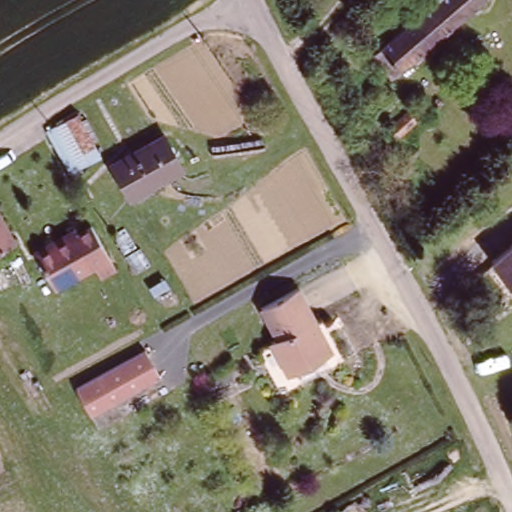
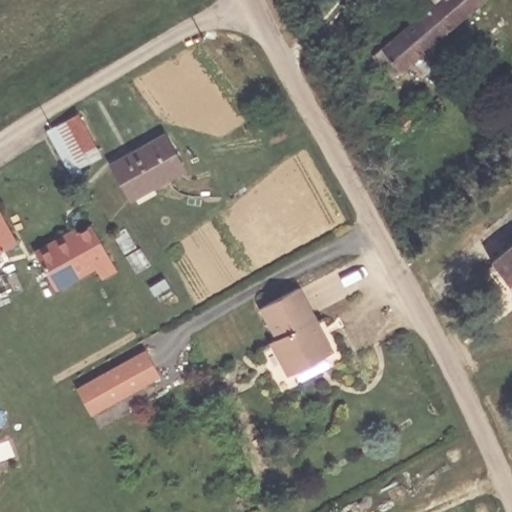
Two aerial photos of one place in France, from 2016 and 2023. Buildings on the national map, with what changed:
unchanged [(392,77),(373,52),(433,2),(431,0),(485,0),(392,77)]
unchanged [(53,134),(59,130),(81,117),(99,151),(78,165),(73,168),(53,134)]
unchanged [(126,150),(162,129),(183,165),(147,186),(131,195),(110,160),(126,150)]
unchanged [(427,164),(437,176),(419,191),(409,179),(427,164)]
unchanged [(0,253),(0,213),(18,241),(0,253)]
unchanged [(70,230),(74,237),(90,229),(115,270),(98,280),(93,272),(54,291),(31,251),(70,230)]
unchanged [(494,266),(512,252),(512,287),(494,266)]
unchanged [(298,290),(331,350),(286,375),(268,341),(277,336),(262,309),(298,290)]
unchanged [(162,376),(89,412),(78,388),(145,351),(162,376)]

